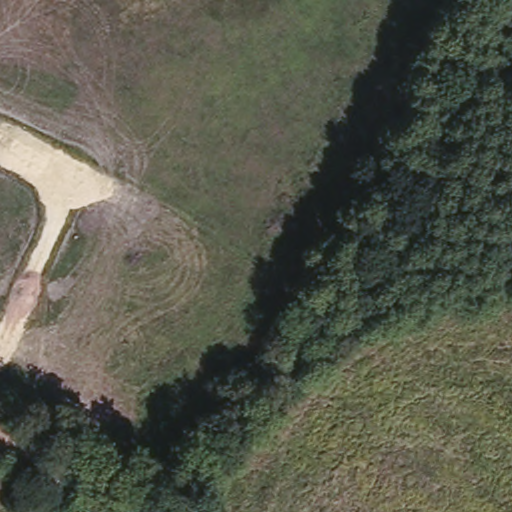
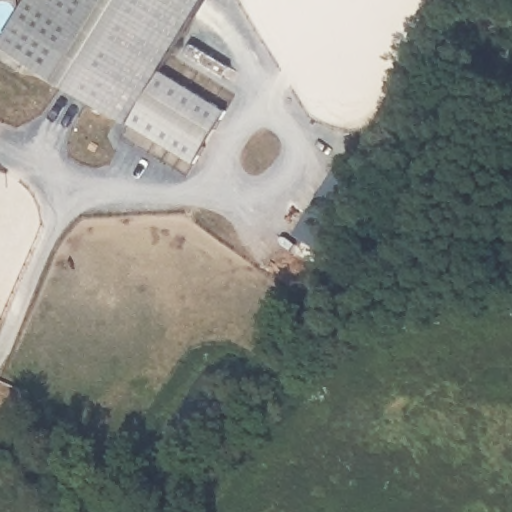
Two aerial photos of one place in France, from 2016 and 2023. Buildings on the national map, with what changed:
new [(233,113),(199,166),(0,57),(0,44),(26,0),(209,0),(166,69),(233,113)]

